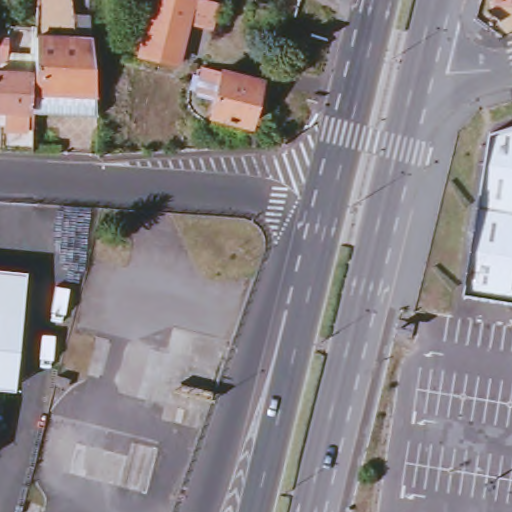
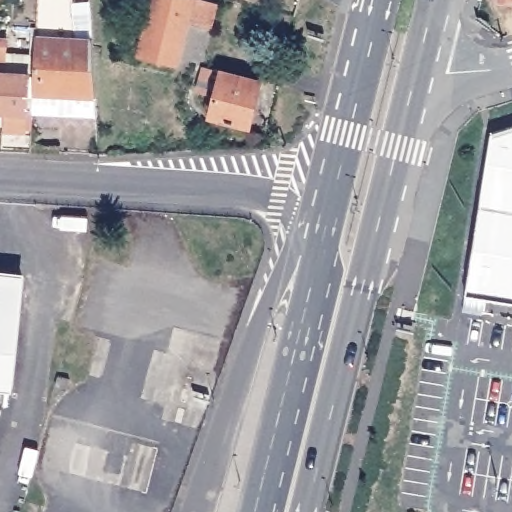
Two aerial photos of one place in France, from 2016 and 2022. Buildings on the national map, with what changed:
unchanged [(35,20),(37,0),(73,0),(76,21),(35,20)]
unchanged [(188,20),(179,59),(141,50),(154,0),(218,0),(211,25),(188,20)]
unchanged [(494,0),(512,0),(512,1),(493,1),(494,0)]
unchanged [(97,108),(35,106),(35,101),(38,31),(92,31),(97,108)]
unchanged [(7,35),(5,54),(0,53),(0,33),(7,35)]
unchanged [(16,106),(0,104),(0,67),(30,69),(28,101),(35,101),(35,106),(33,148),(0,146),(2,112),(16,113),(16,106)]
unchanged [(211,121),(216,103),(198,98),(205,73),(261,87),(251,130),(211,121)]
unchanged [(493,133),(512,127),(512,301),(470,295),(493,133)]
unchanged [(17,377),(0,375),(0,267),(26,270),(17,377)]

